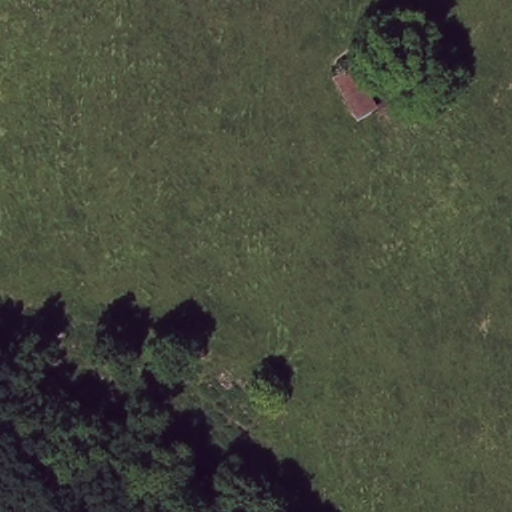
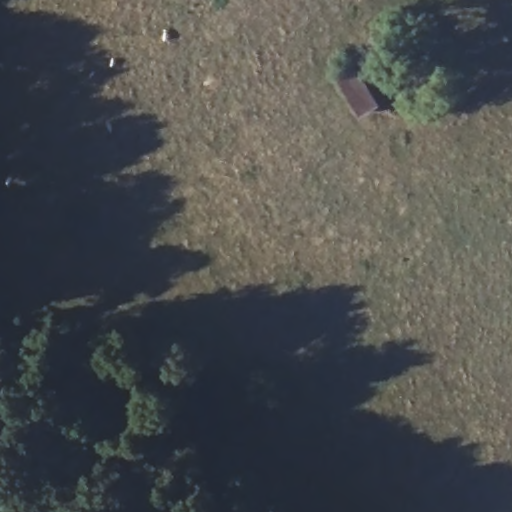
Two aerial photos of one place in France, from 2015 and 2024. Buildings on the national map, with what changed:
unchanged [(358,68),(381,110),(364,120),(341,79),(358,68)]

